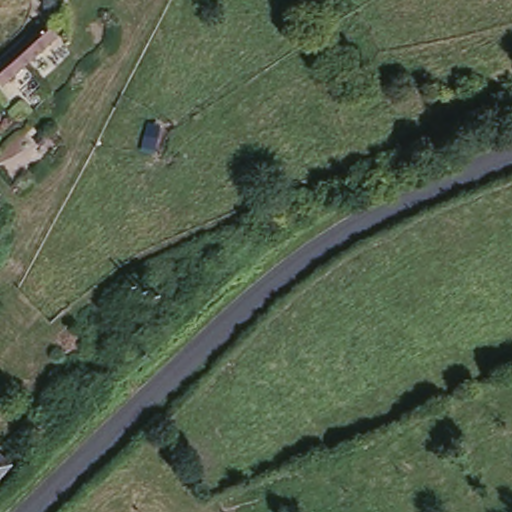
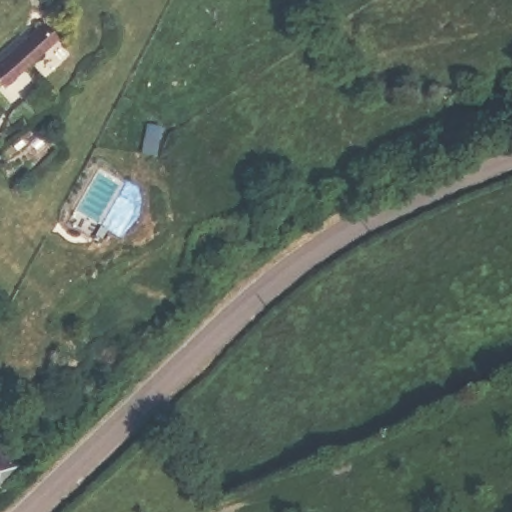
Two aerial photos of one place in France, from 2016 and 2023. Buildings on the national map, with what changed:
unchanged [(8,85),(0,76),(0,66),(45,25),(58,40),(8,85)]
unchanged [(12,466),(0,479),(0,455),(12,466)]

